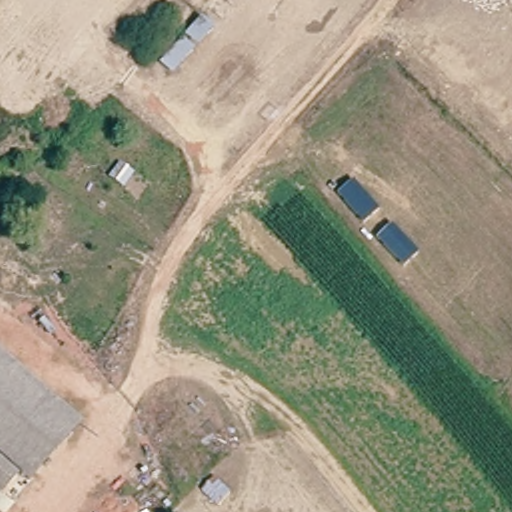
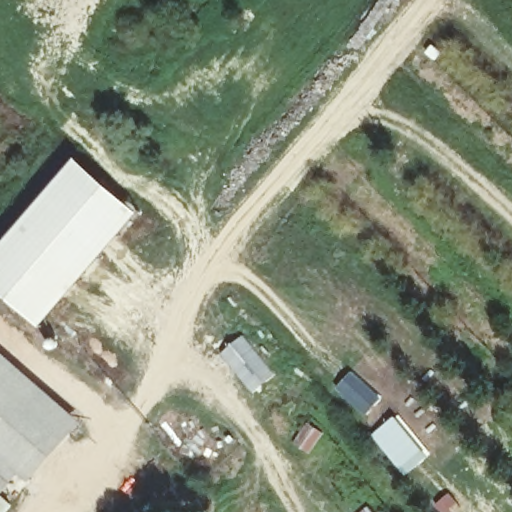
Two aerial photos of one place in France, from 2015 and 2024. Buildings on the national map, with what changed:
new [(0,289),(0,248),(79,157),(141,212),(41,326),(0,289)]
unchanged [(76,423),(72,428),(33,395),(0,366),(0,349),(80,419),(76,423)]
unchanged [(72,428),(30,476),(0,450),(0,366),(33,395),(72,428)]
unchanged [(0,452),(19,468),(0,490),(0,452)]
new [(367,503),(375,512),(358,512),(367,503)]

